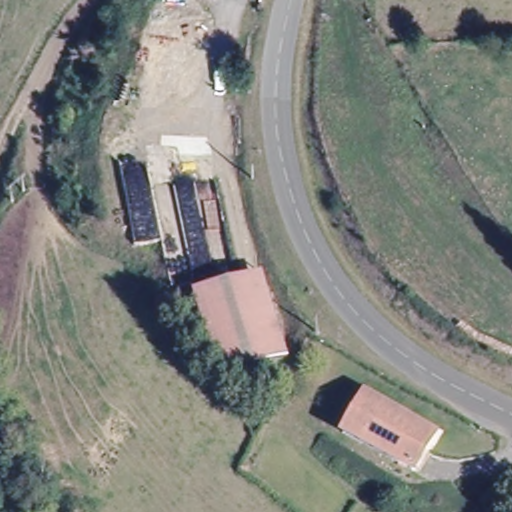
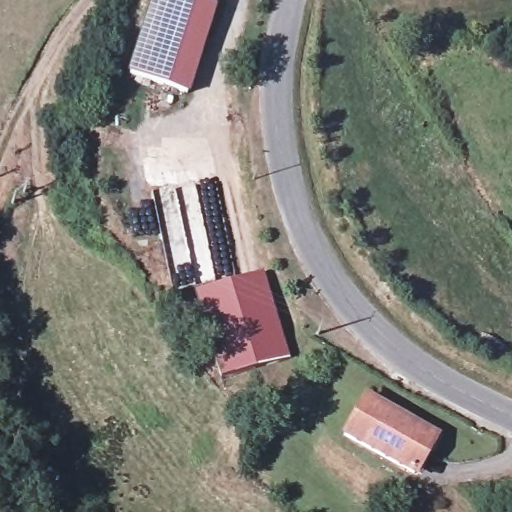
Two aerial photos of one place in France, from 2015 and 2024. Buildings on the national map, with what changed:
new [(188,94),(127,74),(151,0),(196,0),(216,7),(188,94)]
demolished [(173,70),(181,18),(210,19),(200,74),(173,70)]
unchanged [(226,382),(198,295),(257,275),(284,361),(226,382)]
unchanged [(341,427),(358,391),(431,429),(414,466),(341,427)]

